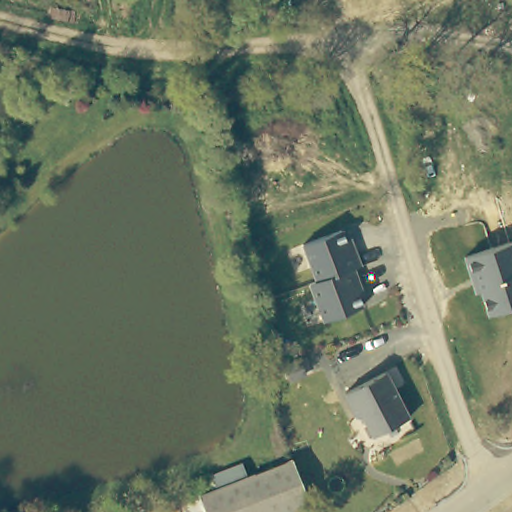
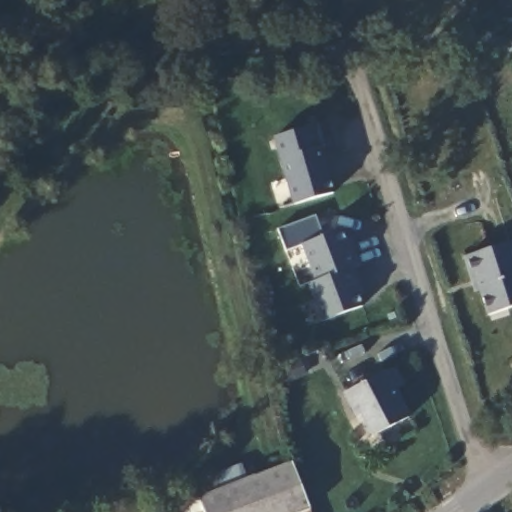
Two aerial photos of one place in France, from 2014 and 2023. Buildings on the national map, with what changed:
new [(270,137),(315,125),(335,192),(291,204),(270,137)]
unchanged [(307,283),(315,281),(302,245),(347,230),(360,265),(352,267),(366,306),(322,322),(307,283)]
unchanged [(473,278),(468,280),(462,262),(510,247),(512,253),(512,312),(486,320),(473,278)]
unchanged [(331,392),(375,368),(379,374),(404,417),(365,437),(352,415),(346,419),(335,397),(331,392)]
unchanged [(199,495),(201,501),(296,465),(314,511),(311,512),(206,512),(205,511),(202,512),(192,512),(187,499),(199,495)]

